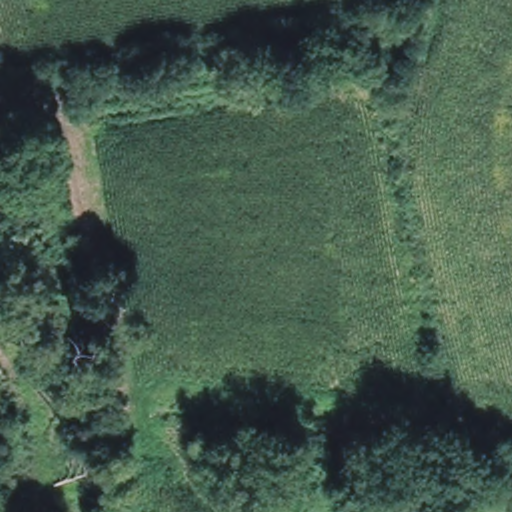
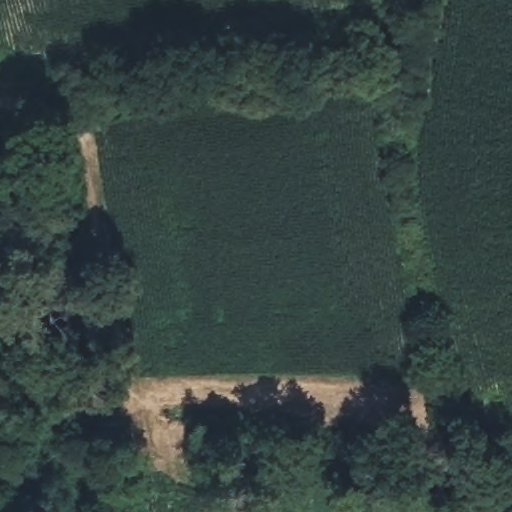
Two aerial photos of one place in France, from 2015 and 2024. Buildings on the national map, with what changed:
unchanged [(426,67),(430,96),(410,99),(405,70),(426,67)]

